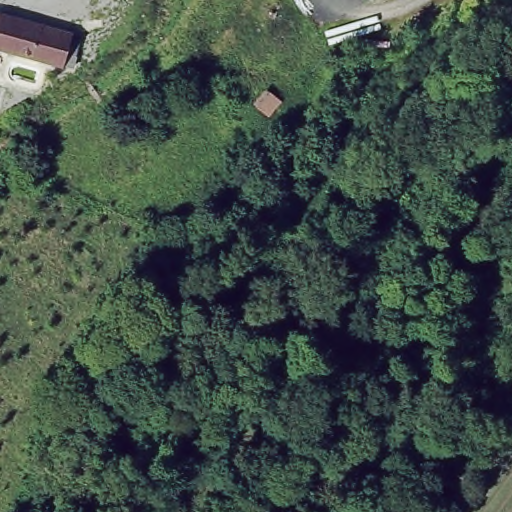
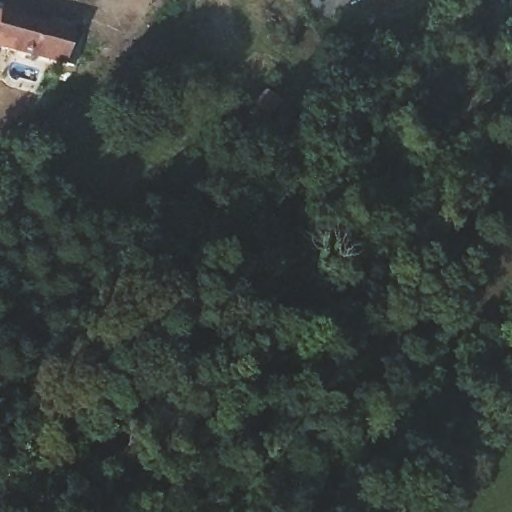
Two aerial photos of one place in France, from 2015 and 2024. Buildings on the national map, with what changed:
unchanged [(10,14),(75,31),(66,62),(1,44),(0,45),(0,10),(10,12),(10,14)]
unchanged [(269,91),(280,100),(268,115),(256,106),(269,91)]

